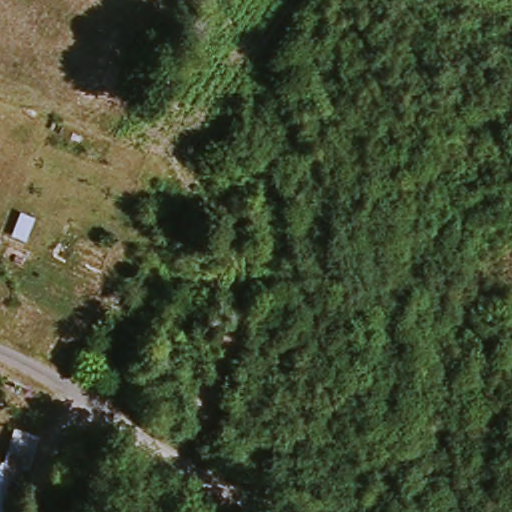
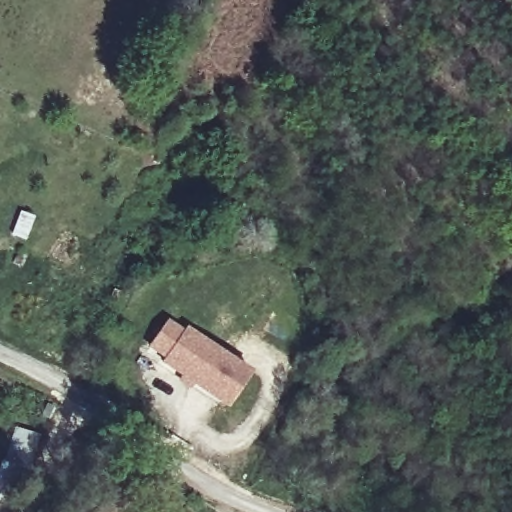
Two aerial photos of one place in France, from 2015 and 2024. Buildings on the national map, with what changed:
new [(148,350),(165,326),(180,337),(183,333),(248,379),(224,409),(160,365),(163,361),(148,350)]
unchanged [(19,474),(6,512),(0,512),(0,457),(11,428),(36,435),(26,473),(19,474)]

